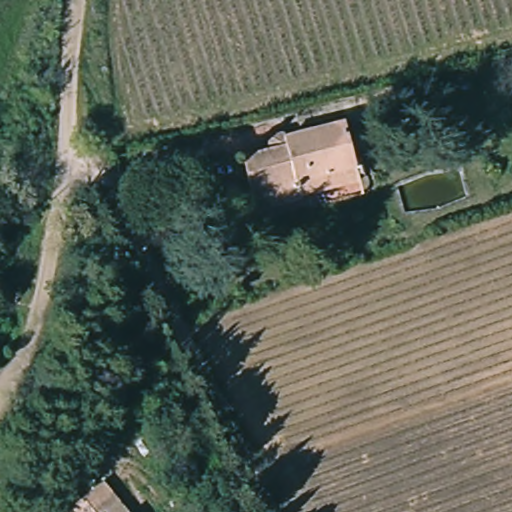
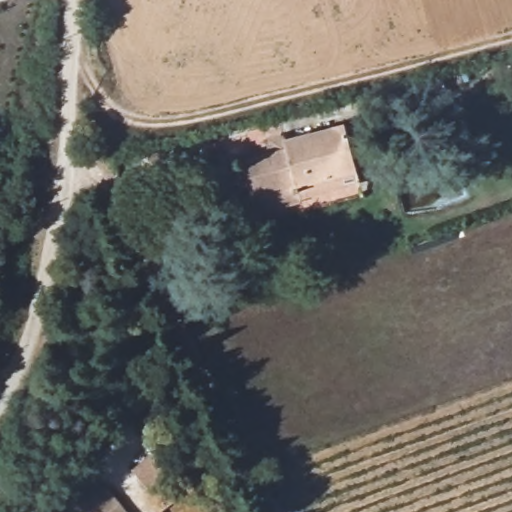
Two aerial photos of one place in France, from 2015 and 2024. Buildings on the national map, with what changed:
unchanged [(289,151),(287,144),(342,129),(357,178),(258,204),(245,161),(289,151)]
unchanged [(102,484),(124,512),(73,512),(68,507),(102,484)]

